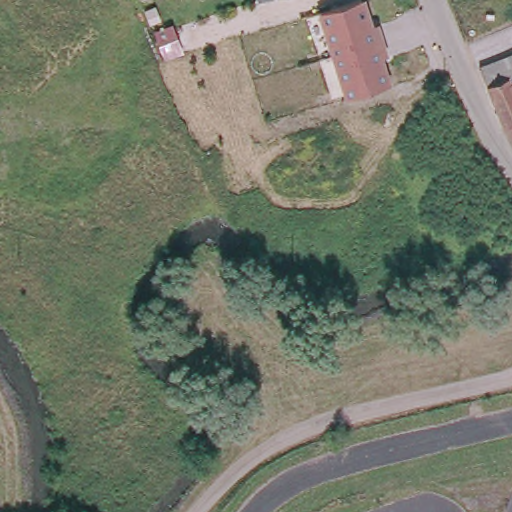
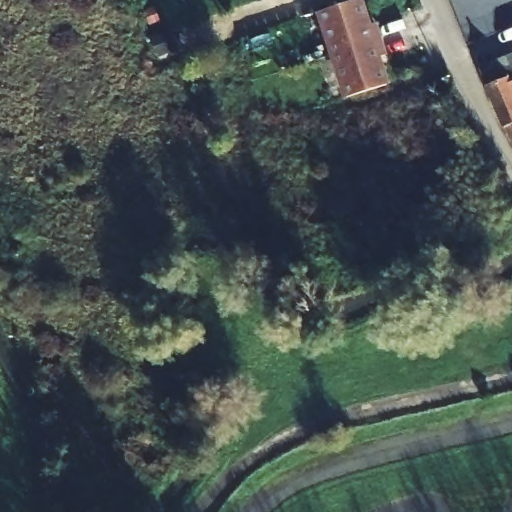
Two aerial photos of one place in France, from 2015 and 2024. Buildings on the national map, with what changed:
unchanged [(366,0),(392,84),(343,99),(319,12),(351,0),(366,0)]
unchanged [(512,138),(505,125),(480,68),(512,54),(512,138)]

